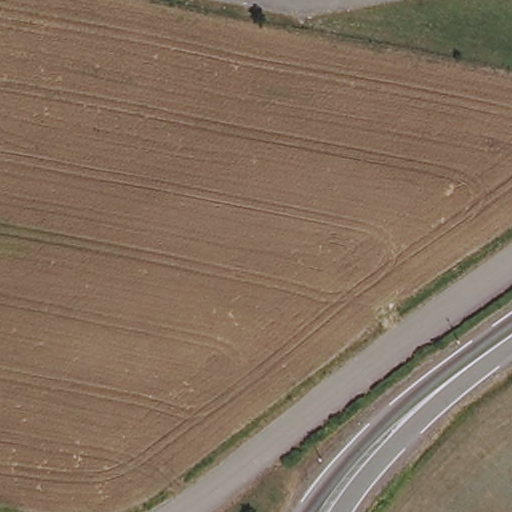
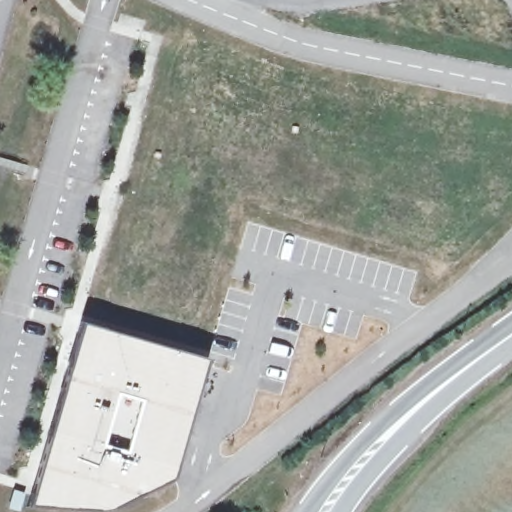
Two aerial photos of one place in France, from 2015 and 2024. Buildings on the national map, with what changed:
new [(209,346),(176,465),(155,482),(121,497),(103,496),(101,505),(29,498),(83,309),(209,346)]

